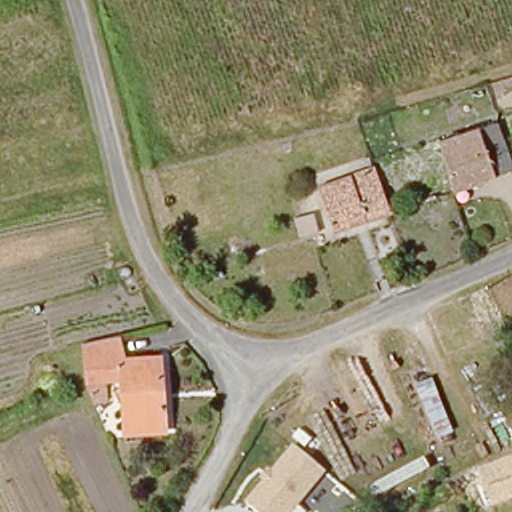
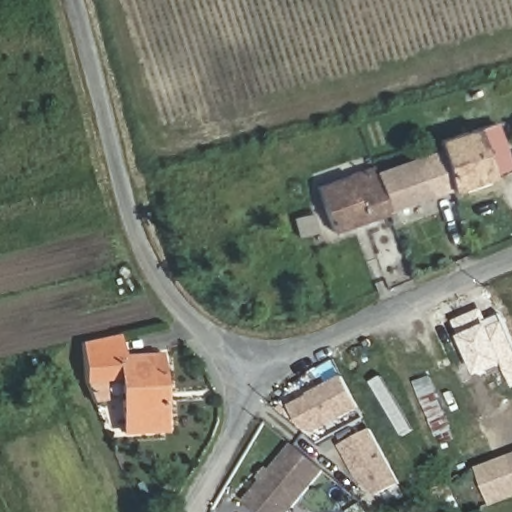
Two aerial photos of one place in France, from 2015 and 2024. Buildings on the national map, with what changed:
unchanged [(512,169),(512,178),(457,192),(456,190),(442,148),(442,146),(441,140),(500,125),(512,169)]
new [(442,148),(456,190),(391,212),(377,171),(442,148)]
unchanged [(327,229),(313,184),(320,180),(371,166),(384,211),(327,229)]
unchanged [(307,223),(300,225),(288,227),(283,209),(295,205),(302,204),(307,223)]
new [(512,346),(512,378),(507,367),(479,379),(463,342),(456,322),(480,312),(485,323),(500,317),(512,346)]
unchanged [(119,355),(151,430),(124,440),(105,383),(94,387),(87,371),(77,350),(112,336),(119,355)]
unchanged [(157,344),(180,421),(151,430),(119,355),(157,344)]
new [(310,437),(289,405),(342,377),(360,410),(310,437)]
unchanged [(446,400),(455,430),(438,437),(427,410),(446,400)]
new [(401,486),(379,496),(360,485),(340,447),(371,430),(401,486)]
unchanged [(258,476),(267,465),(272,469),(293,443),(327,472),(294,512),(257,512),(245,502),(262,480),(258,476)]
unchanged [(477,467),(512,454),(512,498),(491,506),(477,467)]
unchanged [(450,512),(448,508),(465,502),(468,512),(450,512)]

